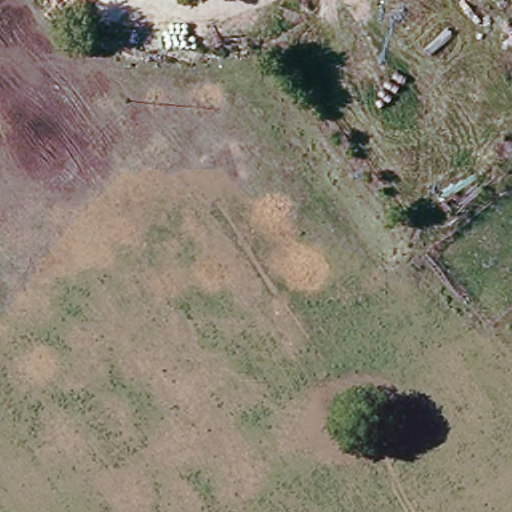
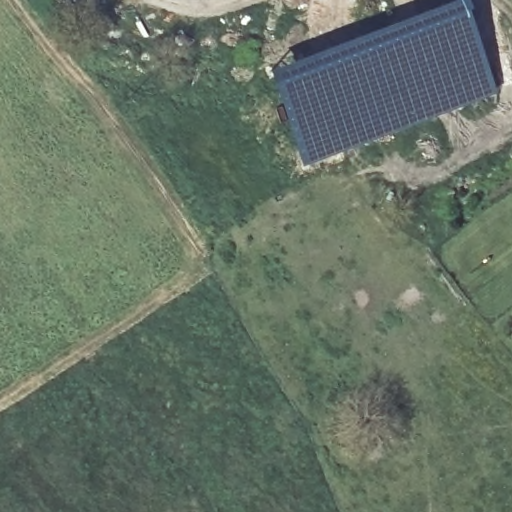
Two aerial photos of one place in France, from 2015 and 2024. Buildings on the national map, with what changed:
new [(458,0),(497,94),(391,135),(300,167),(266,70),(452,0),(458,0)]

